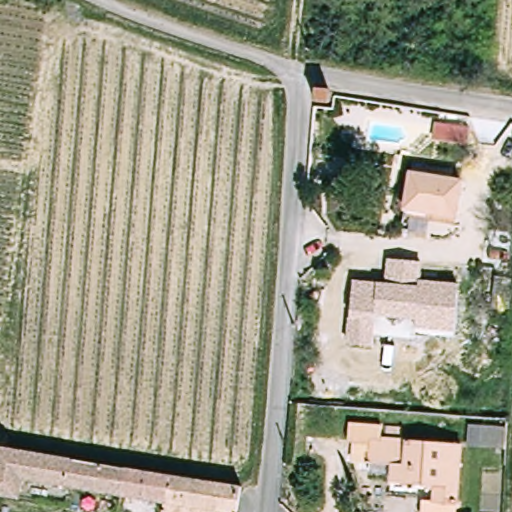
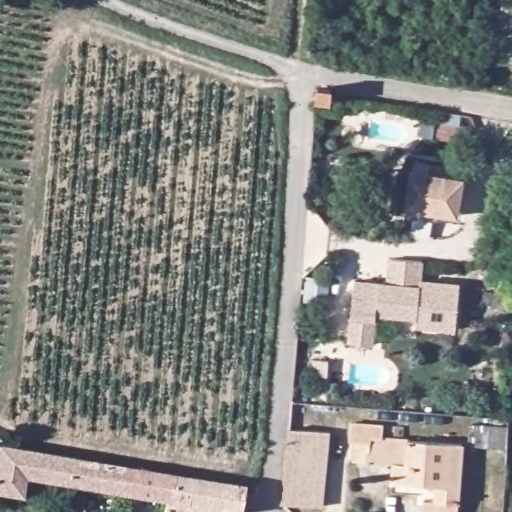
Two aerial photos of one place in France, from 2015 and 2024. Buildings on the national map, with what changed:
unchanged [(464,181),(457,216),(405,206),(412,172),(464,181)]
unchanged [(422,280),(456,283),(452,331),(415,327),(415,320),(376,317),(373,346),(348,345),(354,281),(378,282),(385,283),(388,260),(422,263),(422,280)]
unchanged [(502,446),(485,444),(475,443),(477,423),(487,424),(503,426),(502,446)]
new [(323,508),(282,504),(290,429),(331,433),(323,508)]
unchanged [(467,443),(462,502),(440,500),(441,485),(396,481),(398,464),(373,462),(375,436),(467,443)]
unchanged [(125,495),(26,477),(23,493),(0,488),(0,443),(1,441),(131,465),(176,474),(246,488),(243,512),(221,512),(219,512),(218,512),(167,512),(169,503),(125,495)]

